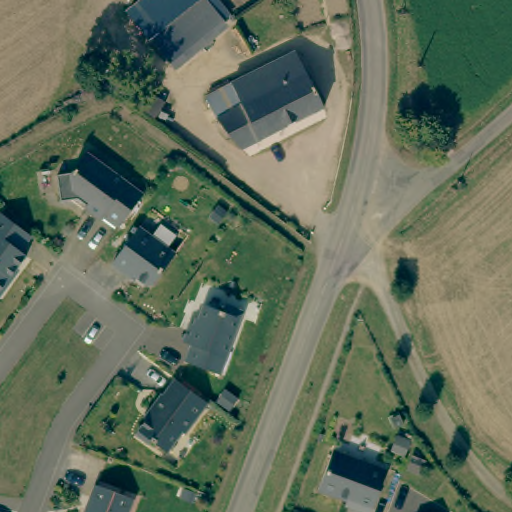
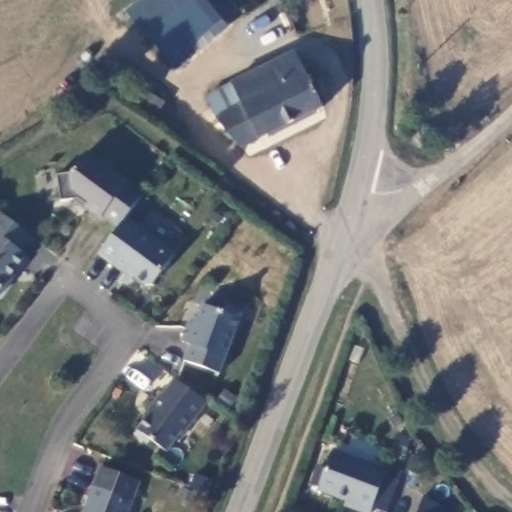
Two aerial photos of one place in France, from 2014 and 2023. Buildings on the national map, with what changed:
unchanged [(175,71),(127,15),(144,0),(207,0),(229,25),(175,71)]
unchanged [(290,50),(317,106),(234,145),(208,90),(290,50)]
unchanged [(109,219),(106,222),(91,210),(92,209),(84,202),(68,205),(64,180),(79,177),(93,157),(149,199),(125,231),(109,219)]
unchanged [(33,237),(21,252),(28,256),(18,270),(15,268),(9,276),(10,283),(1,296),(0,296),(0,214),(0,213),(31,236),(33,237)]
unchanged [(177,255),(154,286),(148,287),(130,274),(125,275),(113,265),(140,228),(177,255)]
unchanged [(244,312),(220,376),(185,362),(191,346),(183,343),(190,324),(196,326),(204,306),(224,313),(227,306),(244,312)]
unchanged [(185,435),(183,433),(168,453),(151,441),(149,445),(136,435),(146,421),(144,420),(162,395),(164,396),(175,380),(190,391),(208,404),(185,435)]
unchanged [(373,512),(354,512),(355,510),(318,496),(334,455),(387,475),(373,512)]
unchanged [(128,512),(85,512),(95,485),(133,500),(128,512)]

